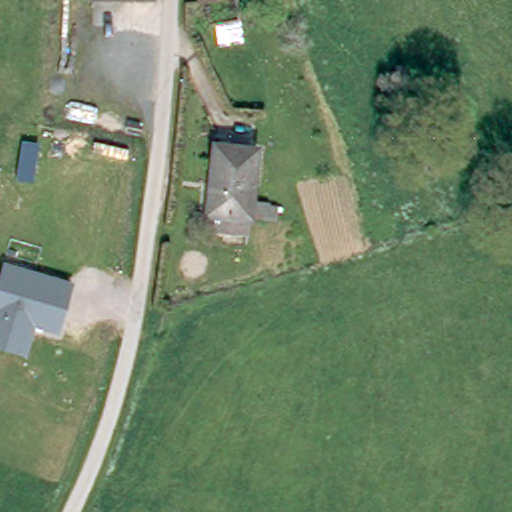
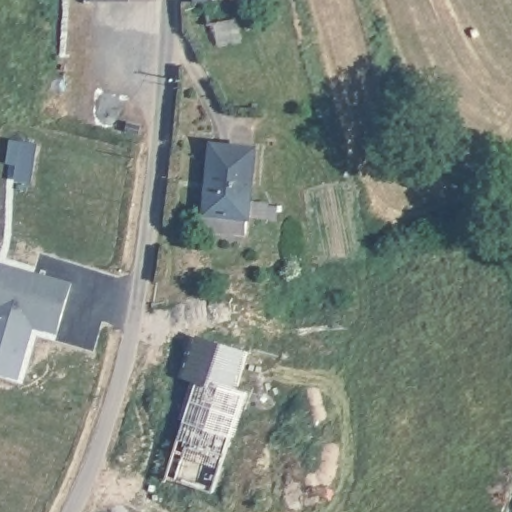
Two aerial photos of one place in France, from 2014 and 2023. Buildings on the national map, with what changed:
unchanged [(203,0),(193,2),(193,0),(228,0),(231,14),(208,19),(203,0)]
unchanged [(284,217),(248,217),(206,216),(211,146),(252,146),(248,203),(286,204),(284,217)]
unchanged [(19,379),(0,373),(0,267),(1,262),(73,282),(58,333),(34,326),(19,379)]
new [(245,393),(214,492),(177,482),(189,442),(179,438),(198,379),(188,375),(199,337),(243,352),(231,389),(245,393)]

